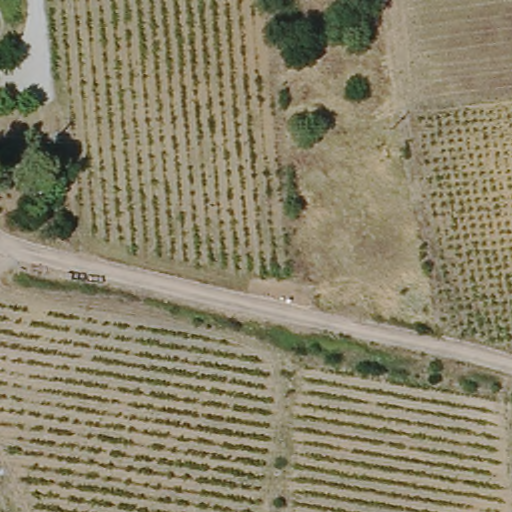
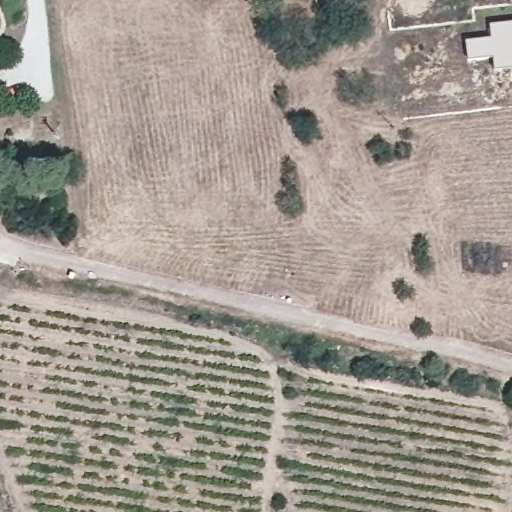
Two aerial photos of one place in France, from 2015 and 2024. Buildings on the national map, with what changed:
new [(470,58),(467,40),(493,37),(491,24),(512,21),(512,68),(497,69),(495,55),(470,58)]

